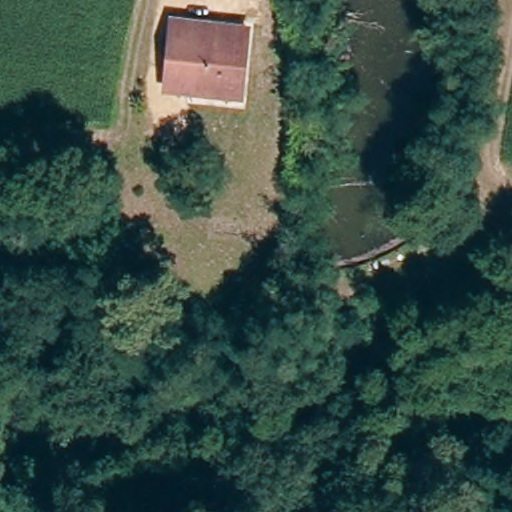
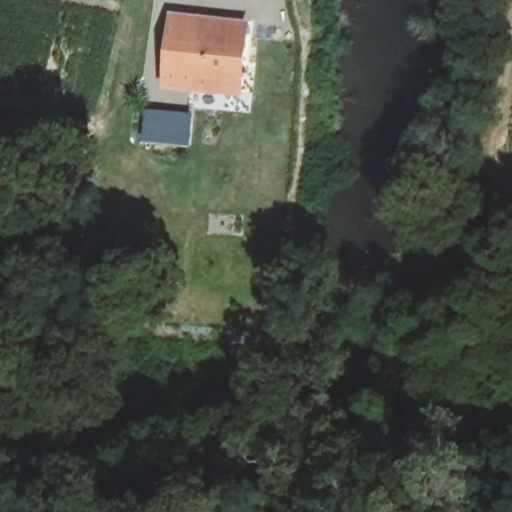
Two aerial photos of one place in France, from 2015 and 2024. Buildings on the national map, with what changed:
unchanged [(250,24),(236,91),(167,80),(178,14),(250,24)]
new [(144,142),(146,110),(193,114),(191,146),(144,142)]

